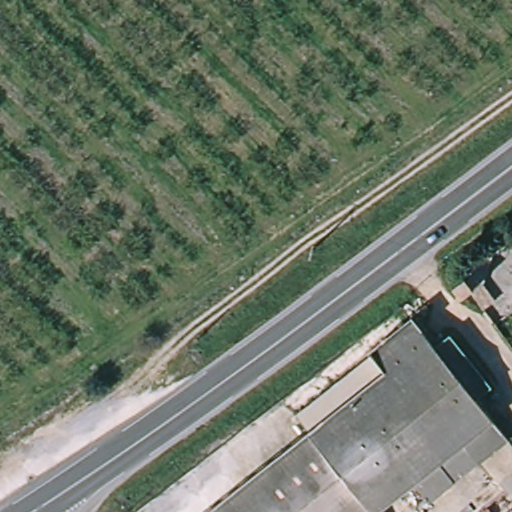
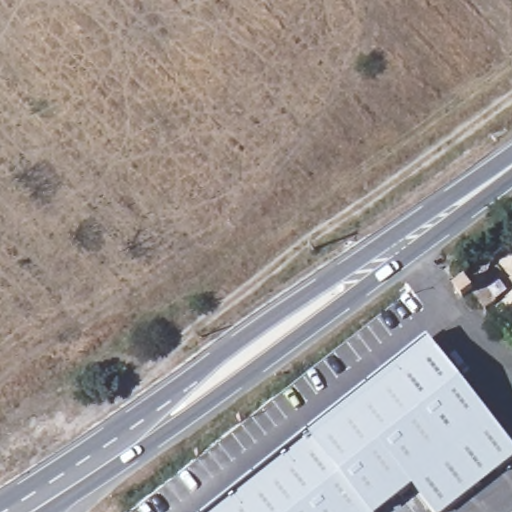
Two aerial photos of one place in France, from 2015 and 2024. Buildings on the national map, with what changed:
unchanged [(310,435),(294,414),(411,320),(430,347),(448,334),(488,386),(472,401),(490,421),(436,461),(453,484),(427,504),(411,482),(374,512),(213,512),(310,435)]
unchanged [(507,442),(453,484),(436,461),(490,421),(507,442)]

